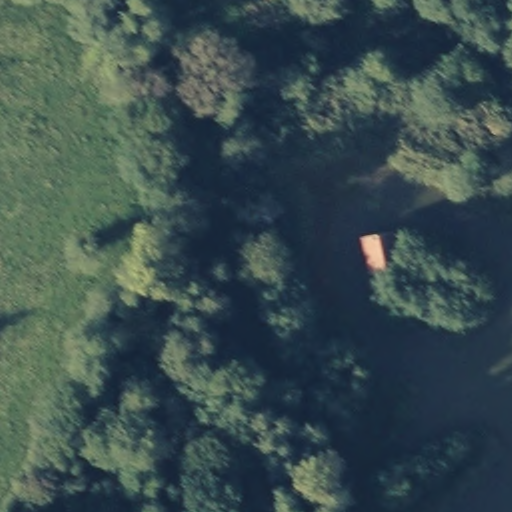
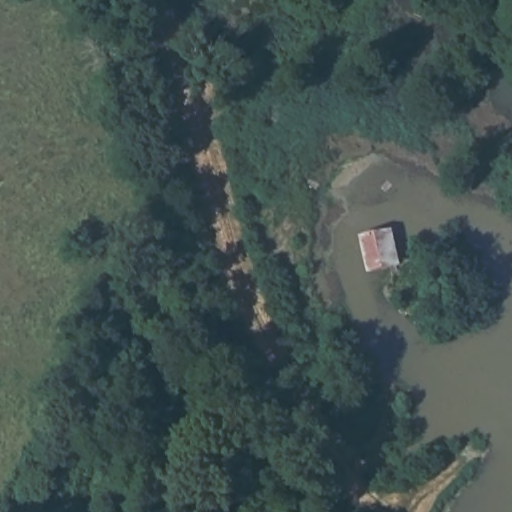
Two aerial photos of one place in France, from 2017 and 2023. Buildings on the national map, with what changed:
unchanged [(358,237),(395,229),(402,268),(367,276),(358,237)]

